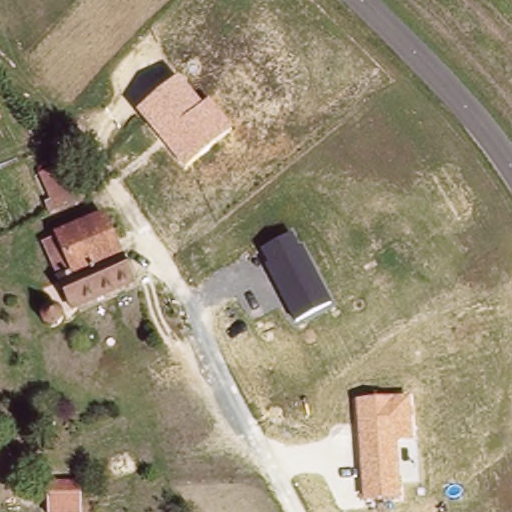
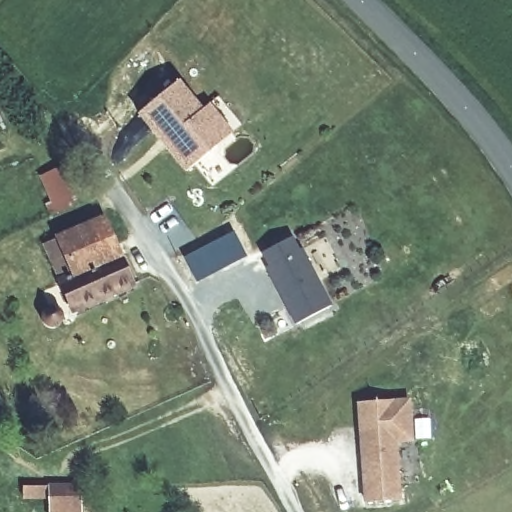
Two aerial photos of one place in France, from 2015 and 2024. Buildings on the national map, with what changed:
unchanged [(204,109),(211,103),(233,134),(185,174),(139,115),(181,81),(204,109)]
unchanged [(0,123),(0,112),(4,121),(0,123)]
unchanged [(88,197),(47,219),(41,206),(48,204),(36,176),(71,162),(88,197)]
unchanged [(130,278),(67,306),(54,273),(41,245),(58,237),(102,217),(130,278)]
new [(198,282),(185,257),(234,233),(247,257),(198,282)]
unchanged [(331,305),(298,323),(260,253),(293,235),(331,305)]
unchanged [(51,299),(58,305),(59,309),(58,314),(55,318),(51,321),(44,320),(40,317),(36,308),(39,303),(43,300),(51,299)]
unchanged [(411,399),(414,440),(398,442),(402,500),(364,503),(356,403),(411,399)]
unchanged [(49,485),(81,483),(82,512),(49,512),(49,485)]

